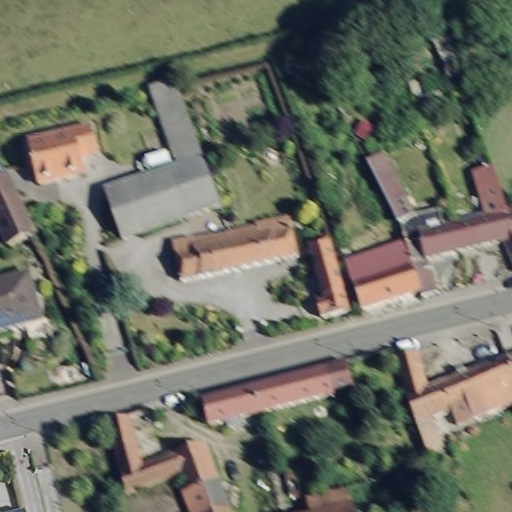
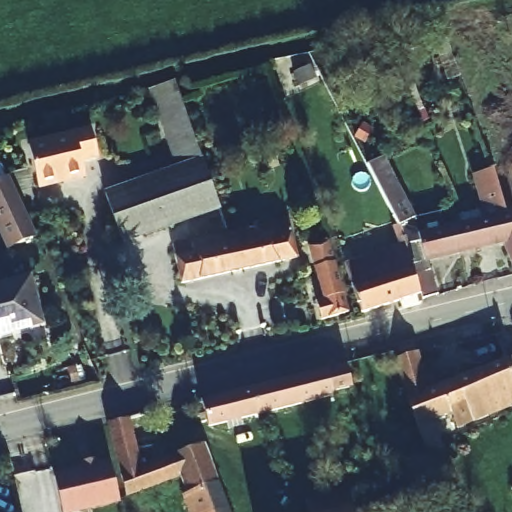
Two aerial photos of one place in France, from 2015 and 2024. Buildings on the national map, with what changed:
unchanged [(173,83),(192,136),(168,144),(148,89),(173,83)]
unchanged [(39,189),(29,144),(90,129),(98,161),(83,165),(88,178),(39,189)]
unchanged [(119,245),(101,196),(105,195),(161,176),(176,170),(168,144),(192,136),(218,210),(119,245)]
unchanged [(419,231),(398,235),(396,236),(392,228),(360,165),(376,157),(407,218),(430,213),(434,227),(419,231)]
unchanged [(13,251),(0,228),(0,170),(38,236),(13,251)]
unchanged [(487,215),(469,181),(486,170),(506,204),(509,209),(511,212),(512,215),(512,266),(499,240),(460,246),(451,223),(487,215)]
unchanged [(419,231),(434,227),(451,223),(460,246),(426,257),(436,293),(420,297),(418,291),(407,259),(409,256),(398,235),(419,231)]
unchanged [(260,226),(262,235),(294,229),(300,255),(186,281),(177,243),(234,232),(260,226)]
unchanged [(328,235),(346,307),(319,314),(314,297),(323,295),(309,240),(328,235)]
unchanged [(359,309),(349,281),(351,281),(344,260),(386,247),(383,242),(396,236),(398,235),(409,256),(407,259),(418,291),(359,309)]
unchanged [(39,323),(0,333),(0,285),(26,277),(39,323)]
unchanged [(412,351),(425,387),(507,356),(510,367),(512,373),(512,410),(473,425),(467,411),(432,425),(442,452),(437,454),(439,460),(430,462),(402,387),(393,357),(412,351)]
unchanged [(510,367),(507,356),(506,353),(512,351),(512,373),(510,367)]
unchanged [(354,382),(333,388),(334,392),(211,425),(209,415),(201,417),(199,411),(206,408),(203,398),(223,393),(236,390),(309,371),(348,361),(354,382)]
unchanged [(131,416),(142,466),(203,437),(230,512),(191,512),(183,491),(188,488),(182,472),(128,496),(109,421),(131,416)]
unchanged [(153,422),(146,424),(144,417),(148,416),(151,416),(153,422)]
new [(79,467),(79,463),(99,458),(100,464),(110,461),(120,503),(83,512),(63,512),(54,474),(79,467)]
unchanged [(306,501),(346,490),(352,512),(308,512),(306,501)]
unchanged [(3,512),(0,512),(0,505),(2,505),(3,512)]

